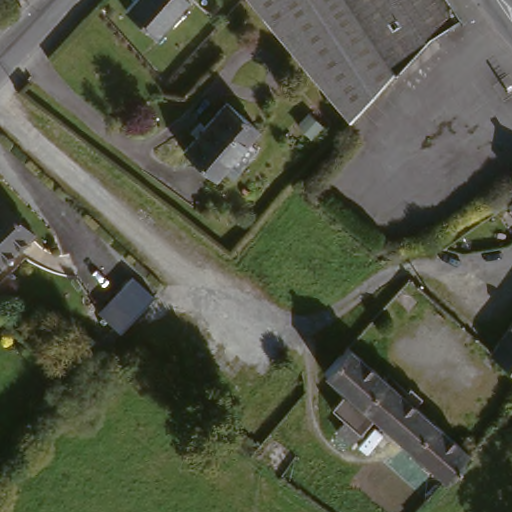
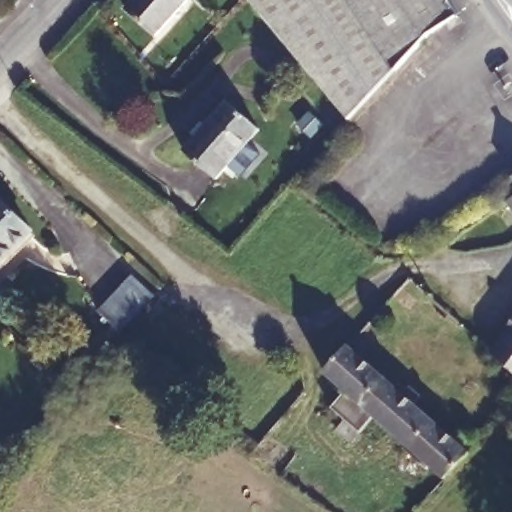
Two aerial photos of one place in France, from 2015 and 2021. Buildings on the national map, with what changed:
unchanged [(189,0),(158,33),(128,6),(134,0),(189,0)]
unchanged [(443,0),(458,24),(434,42),(343,114),(254,0),(443,0)]
unchanged [(236,175),(229,168),(222,176),(189,146),(235,96),(265,127),(256,137),(265,145),(236,175)]
unchanged [(512,212),(505,200),(512,195),(512,212)]
unchanged [(39,227),(26,239),(0,261),(0,204),(9,197),(39,227)]
unchanged [(159,298),(124,334),(102,313),(137,277),(159,298)]
unchanged [(512,318),(512,369),(488,348),(497,338),(512,318)]
unchanged [(342,427),(351,418),(337,407),(352,391),(330,373),(355,346),(480,451),(456,478),(382,415),(367,432),(358,442),(342,427)]

